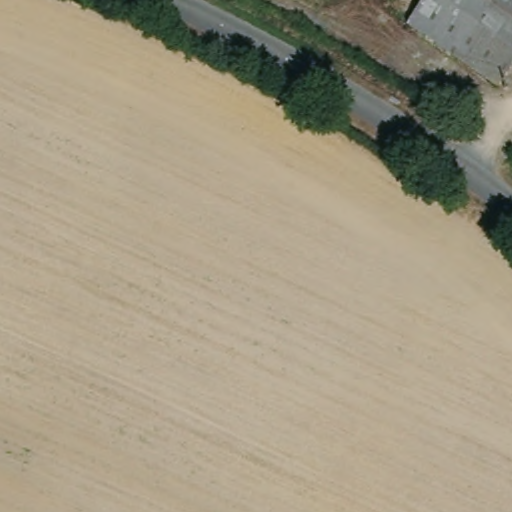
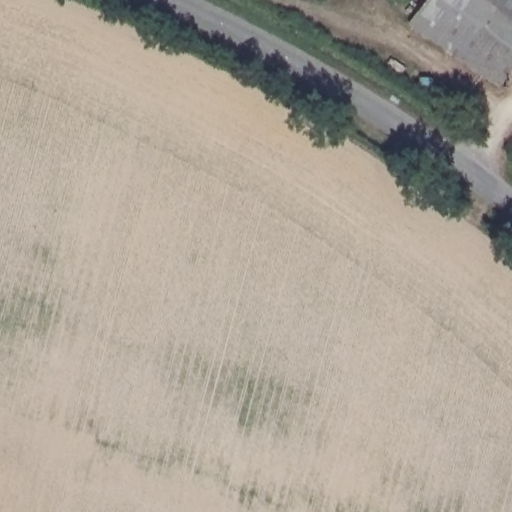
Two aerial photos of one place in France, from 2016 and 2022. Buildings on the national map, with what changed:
unchanged [(512,64),(494,89),(454,60),(413,32),(405,26),(423,0),(512,0),(512,64)]

